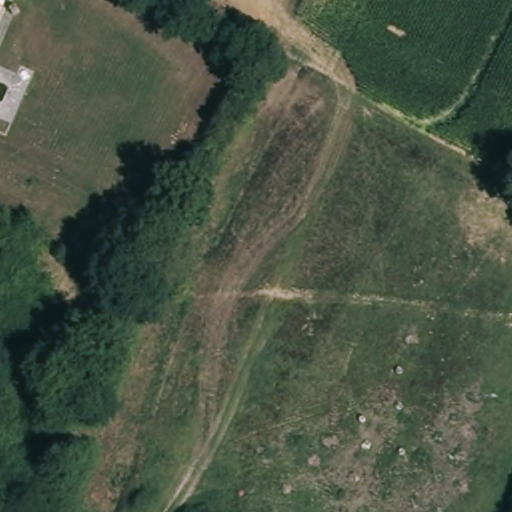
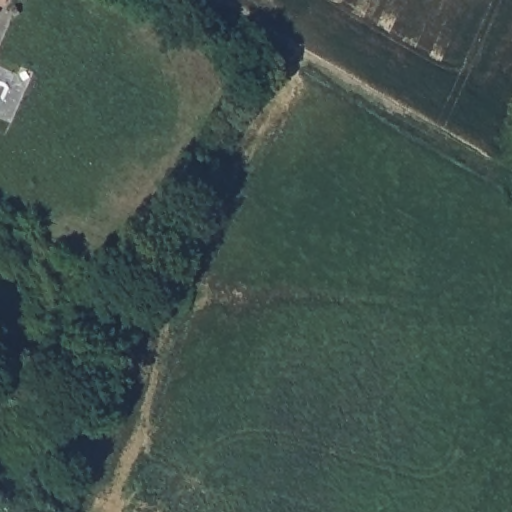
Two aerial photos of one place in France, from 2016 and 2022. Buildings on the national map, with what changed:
unchanged [(7,2),(3,0),(8,0),(7,2)]

